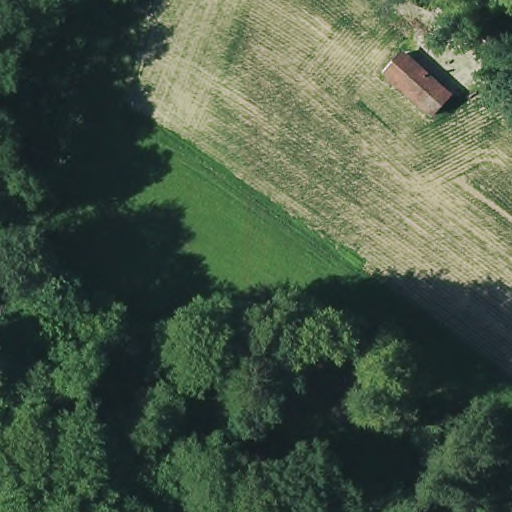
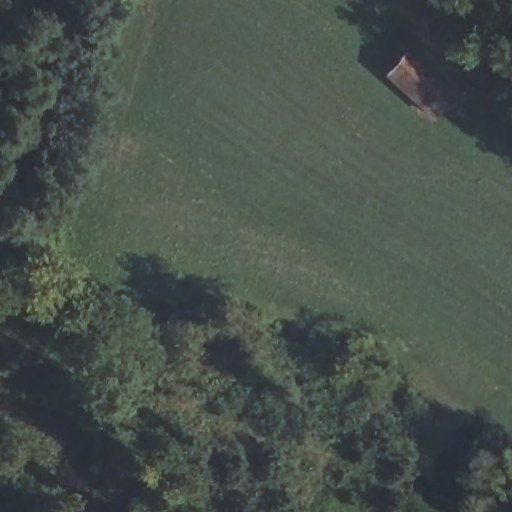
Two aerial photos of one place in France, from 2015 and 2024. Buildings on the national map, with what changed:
unchanged [(434,122),(385,80),(403,57),(453,101),(434,122)]

